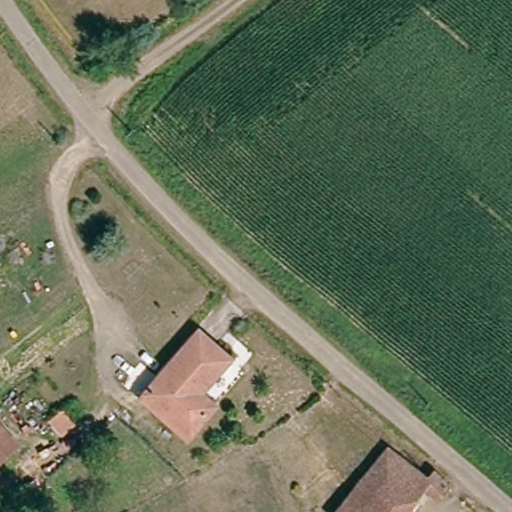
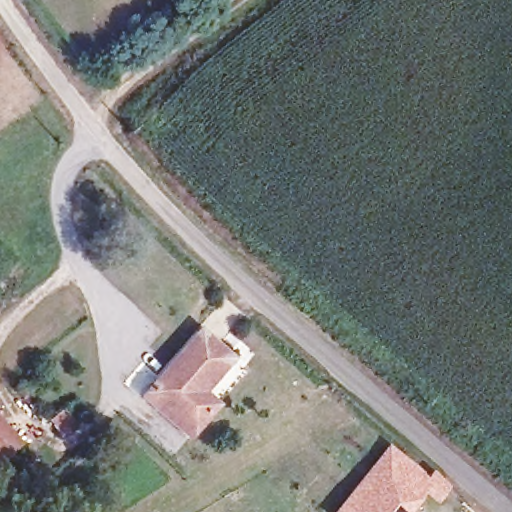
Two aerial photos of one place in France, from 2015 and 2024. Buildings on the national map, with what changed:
unchanged [(193,331),(224,355),(196,392),(210,402),(190,431),(144,395),(193,331)]
unchanged [(9,441),(0,451),(0,432),(9,441)]
unchanged [(389,449),(429,483),(434,476),(448,489),(440,499),(424,486),(404,512),(337,512),(389,449)]

